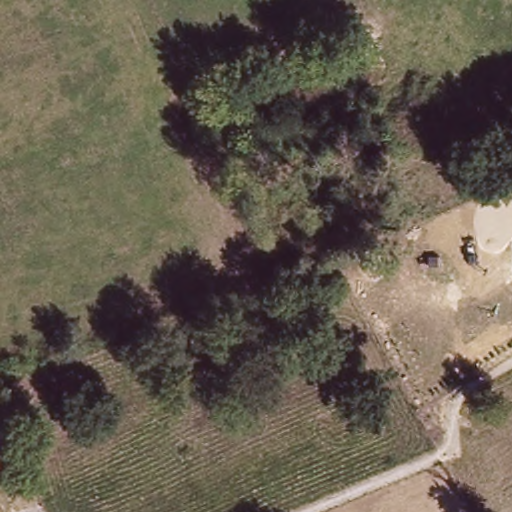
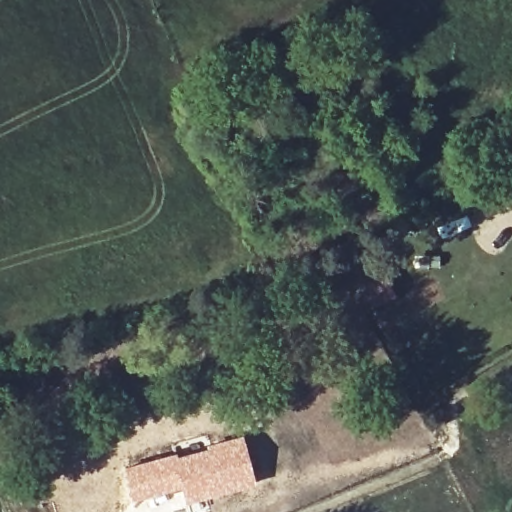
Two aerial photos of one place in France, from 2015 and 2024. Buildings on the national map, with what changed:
new [(165,455),(192,451),(242,434),(256,485),(185,505),(181,489),(134,501),(125,465),(165,455)]

